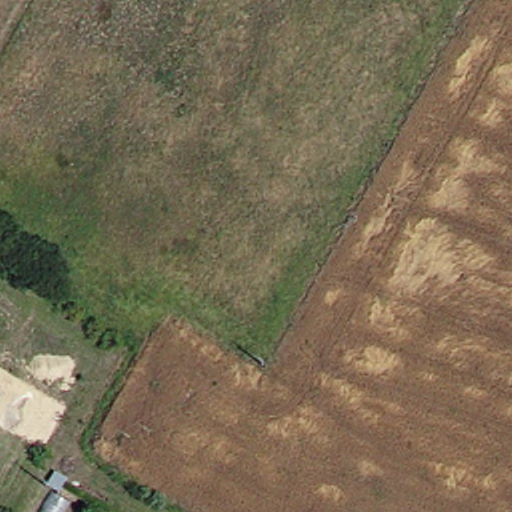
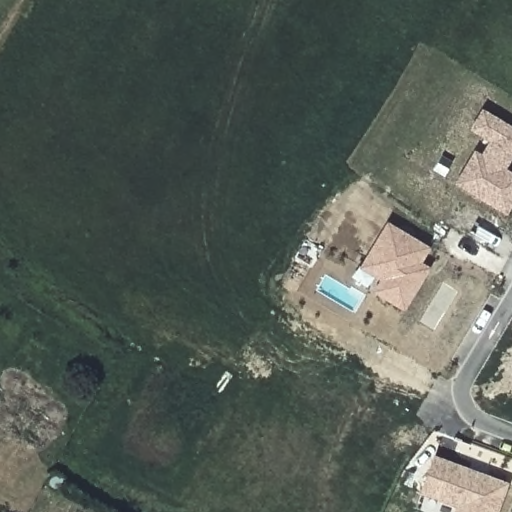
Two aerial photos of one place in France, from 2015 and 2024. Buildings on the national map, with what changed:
new [(512,172),(512,207),(506,215),(454,182),(475,149),(482,154),(490,141),(470,128),(483,108),(512,126),(512,157),(505,167),(512,172)]
new [(421,262),(431,268),(405,310),(373,291),(381,279),(360,266),(388,221),(431,248),(421,262)]
new [(454,512),(455,506),(420,493),(435,454),(508,482),(498,512),(454,512)]

